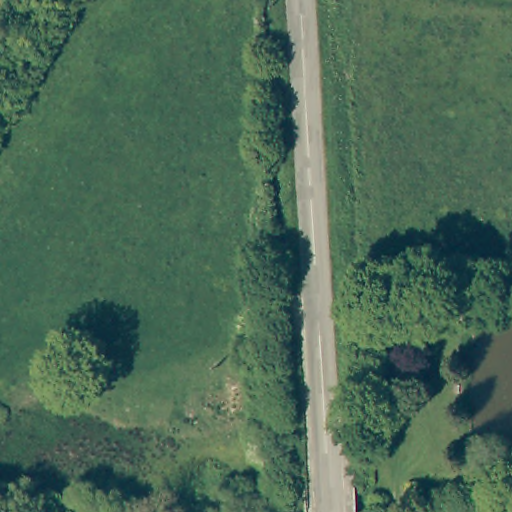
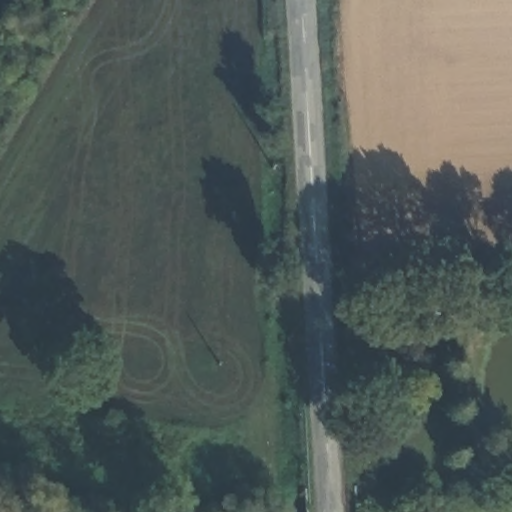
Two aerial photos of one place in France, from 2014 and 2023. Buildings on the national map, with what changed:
unchanged [(448,311),(428,313),(427,297),(448,296),(448,311)]

